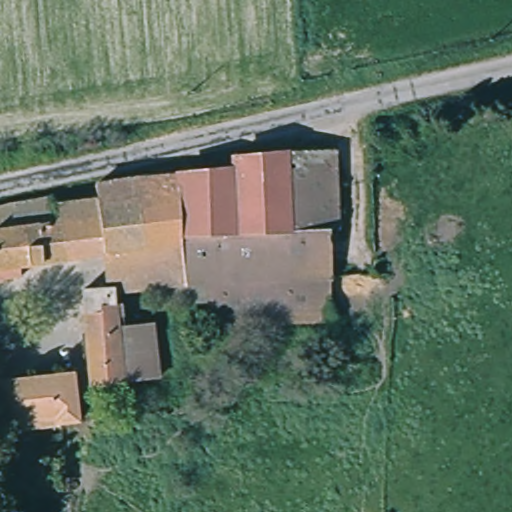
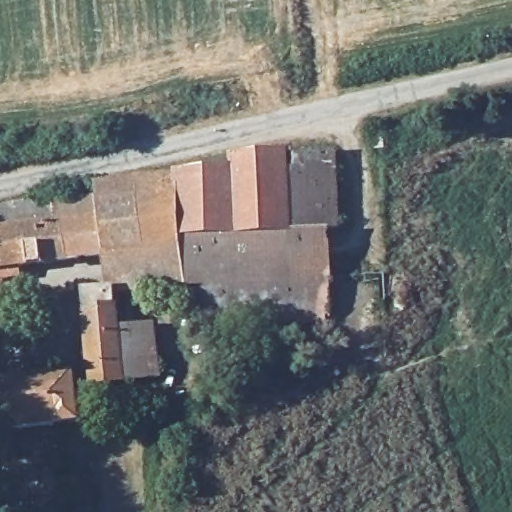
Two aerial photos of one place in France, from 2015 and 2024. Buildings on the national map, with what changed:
unchanged [(370,134),(383,133),(384,149),(371,151),(370,134)]
unchanged [(104,286),(100,252),(21,260),(23,270),(0,273),(0,204),(53,191),(53,196),(95,192),(95,180),(133,173),(135,172),(231,163),(231,154),(336,150),(341,226),(328,226),(328,320),(207,320),(206,282),(115,287),(118,321),(153,318),(160,373),(90,381),(89,366),(82,288),(104,286)]
unchanged [(75,417),(0,426),(0,375),(70,367),(75,417)]

